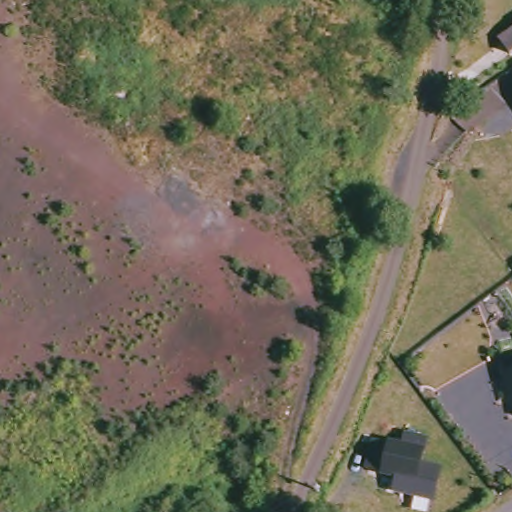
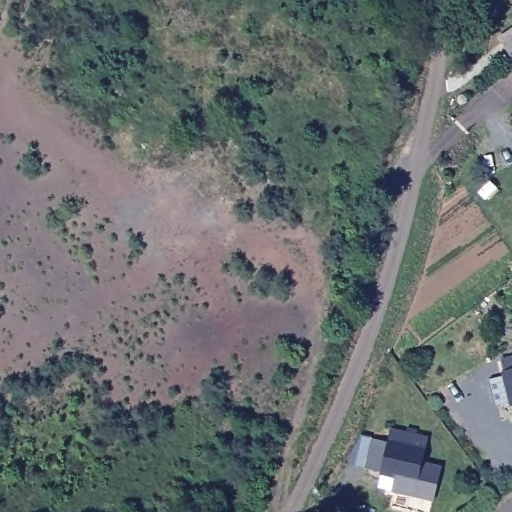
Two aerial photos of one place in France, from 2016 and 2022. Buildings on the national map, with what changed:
unchanged [(502,370),(499,359),(512,356),(512,405),(508,406),(500,372),(502,370)]
unchanged [(393,490),(395,478),(378,473),(380,470),(363,467),(368,439),(385,439),(385,438),(401,441),(403,431),(427,437),(414,494),(393,490)]

